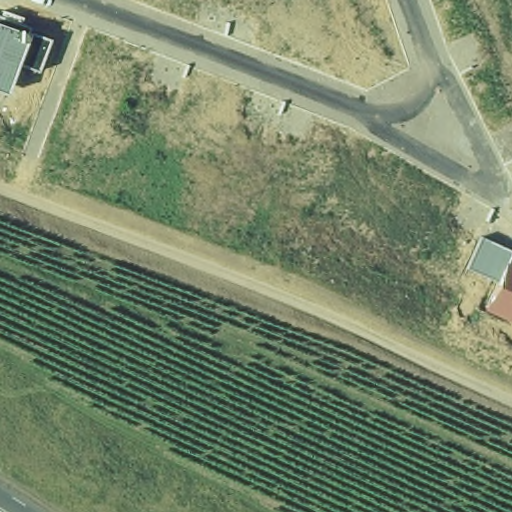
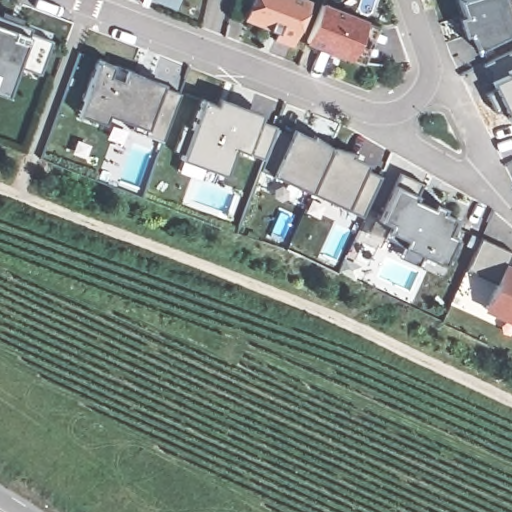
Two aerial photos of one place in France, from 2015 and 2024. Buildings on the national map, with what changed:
new [(251,0),(304,0),(307,1),(290,45),(273,38),(277,29),(269,26),(268,29),(267,29),(268,27),(244,18),(251,0)]
new [(478,51),(469,34),(465,37),(459,19),(465,16),(459,2),(464,0),(504,0),(512,19),(512,34),(478,51)]
new [(380,27),(364,63),(348,60),(306,44),(321,3),(364,19),(380,27)]
unchanged [(1,19),(3,12),(26,19),(23,30),(51,40),(39,74),(18,67),(8,94),(0,91),(0,18),(1,19)]
new [(512,50),(512,122),(509,123),(482,65),(512,50)]
new [(98,59),(138,74),(163,83),(163,86),(179,92),(161,141),(130,130),(133,119),(108,110),(103,124),(77,114),(82,100),(98,59)]
new [(191,129),(202,99),(215,104),(218,97),(261,113),(259,120),(274,126),(263,159),(234,148),(224,175),(223,174),(225,169),(184,154),(182,159),(180,159),(182,153),(176,151),(184,126),(191,129)]
new [(361,216),(347,209),(311,192),(274,175),(261,170),(276,128),(290,136),(293,129),(311,138),(313,134),(329,146),(354,152),(353,156),(368,163),(365,169),(379,176),(361,216)]
new [(382,237),(388,225),(377,220),(399,172),(422,183),(414,199),(431,206),(433,202),(444,207),(442,212),(455,217),(448,233),(456,237),(443,265),(422,255),(417,264),(398,255),(402,246),(382,237)]
unchanged [(512,252),(508,264),(512,266),(512,322),(485,312),(498,282),(469,269),(481,239),(512,252)]

